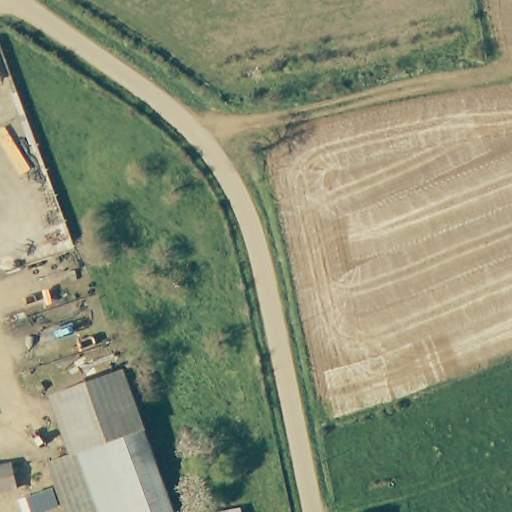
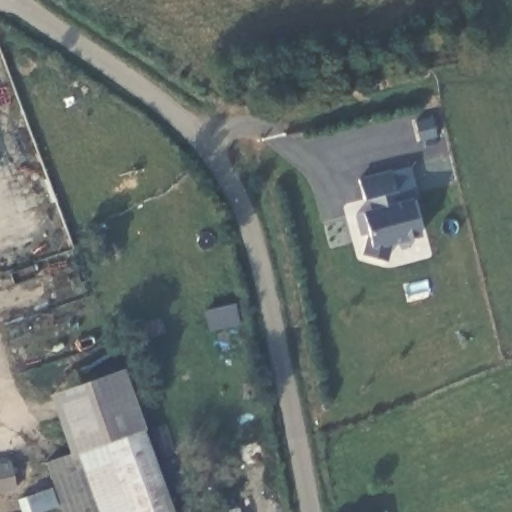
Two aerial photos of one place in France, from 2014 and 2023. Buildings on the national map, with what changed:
new [(363,254),(368,235),(360,236),(355,214),(370,209),(367,198),(363,199),(358,179),(390,171),(398,200),(410,197),(420,237),(391,244),(388,261),(363,254)]
unchanged [(82,453),(75,434),(59,392),(123,366),(135,397),(151,442),(178,512),(102,512),(82,453)]
unchanged [(102,512),(63,512),(59,503),(31,512),(29,512),(22,512),(20,503),(27,501),(25,493),(52,485),(50,477),(45,466),(61,460),(82,453),(102,512)]
unchanged [(22,486),(0,490),(0,463),(17,460),(22,486)]

